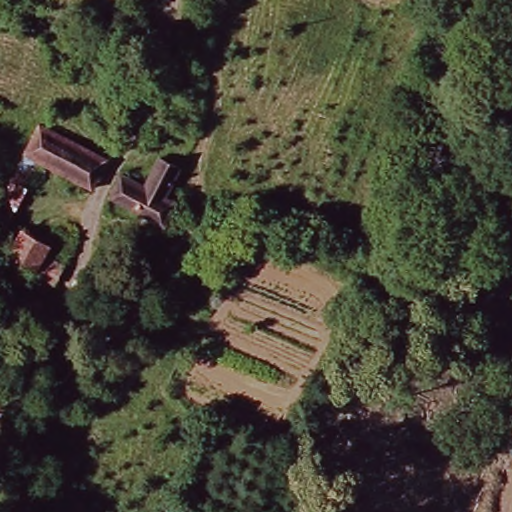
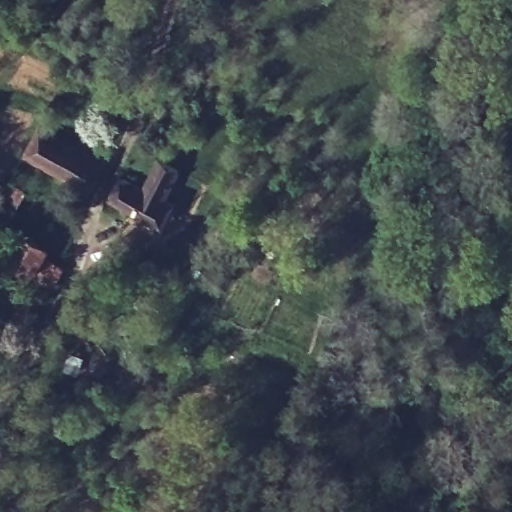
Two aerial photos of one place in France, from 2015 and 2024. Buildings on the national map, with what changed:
unchanged [(33,182),(28,180),(24,191),(8,183),(36,127),(107,161),(94,194),(41,167),(33,182)]
unchanged [(165,201),(175,204),(160,229),(109,201),(120,176),(141,186),(150,172),(157,159),(180,168),(175,181),(165,201)]
unchanged [(8,230),(0,226),(0,207),(15,215),(8,230)]
unchanged [(16,237),(45,251),(40,260),(58,270),(52,283),(5,261),(16,237)]

